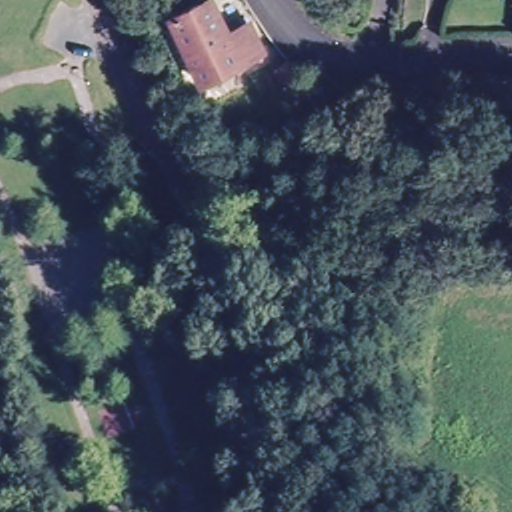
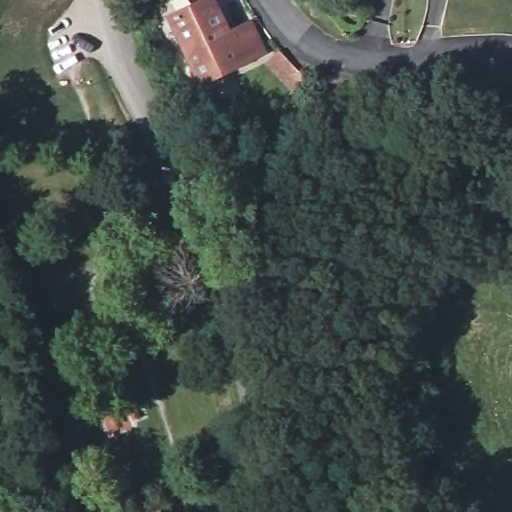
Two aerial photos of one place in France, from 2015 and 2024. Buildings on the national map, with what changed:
unchanged [(166,13),(194,0),(206,0),(221,30),(243,20),(256,48),(195,77),(166,13)]

